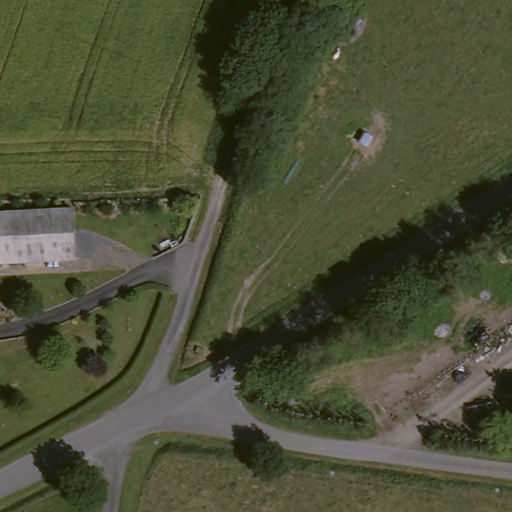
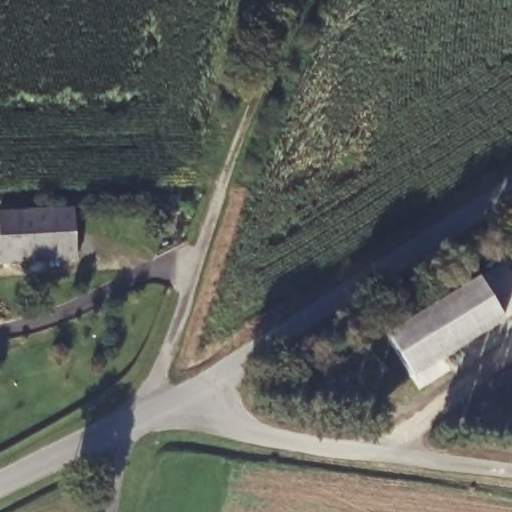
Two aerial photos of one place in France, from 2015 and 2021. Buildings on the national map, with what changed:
unchanged [(5,210),(76,208),(79,259),(5,262),(5,210)]
new [(387,334),(478,278),(505,320),(411,377),(387,334)]

